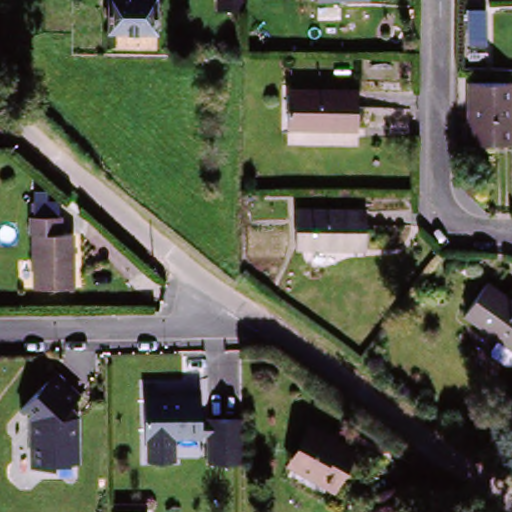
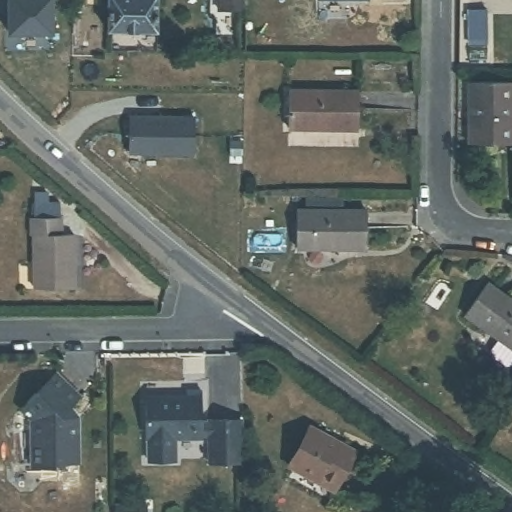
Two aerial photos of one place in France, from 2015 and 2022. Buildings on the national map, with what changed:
new [(13,36),(9,0),(57,0),(56,36),(13,36)]
unchanged [(104,31),(105,0),(154,0),(152,34),(104,31)]
unchanged [(236,0),(236,45),(215,44),(215,0),(236,0)]
unchanged [(512,88),(512,146),(472,145),(473,86),(512,88)]
unchanged [(358,98),(357,136),(285,134),(286,96),(358,98)]
new [(131,118),(195,119),(195,156),(131,154),(131,118)]
unchanged [(365,216),(364,254),(293,253),(293,215),(365,216)]
unchanged [(72,287),(32,289),(29,236),(27,236),(27,219),(57,218),(57,235),(70,235),(72,287)]
unchanged [(487,284),(512,302),(512,347),(465,314),(487,284)]
unchanged [(23,413),(57,376),(82,399),(69,413),(75,420),(80,420),(81,465),(57,466),(57,469),(34,470),(33,423),(23,413)]
unchanged [(185,395),(185,390),(201,390),(200,421),(207,422),(207,419),(238,420),(237,428),(237,431),(237,462),(206,462),(206,434),(199,434),(199,436),(172,436),(172,458),(145,458),(145,435),(142,435),(143,394),(185,395)]
unchanged [(333,488),(331,492),(316,483),(294,471),(285,465),(306,428),(315,434),(351,455),(333,488)]

